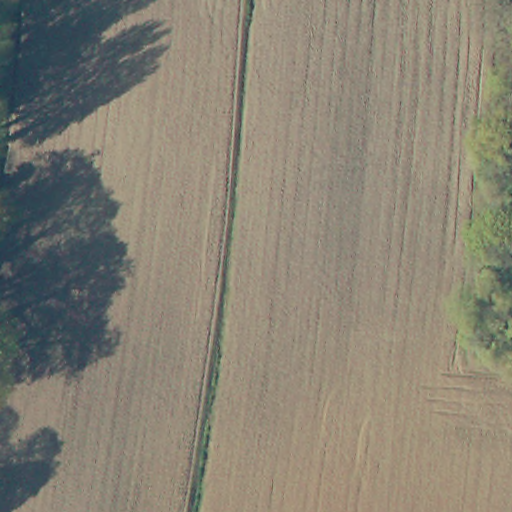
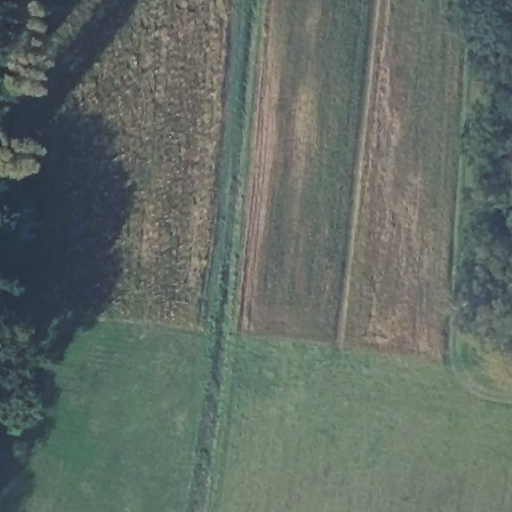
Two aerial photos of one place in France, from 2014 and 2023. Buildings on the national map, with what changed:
[]

